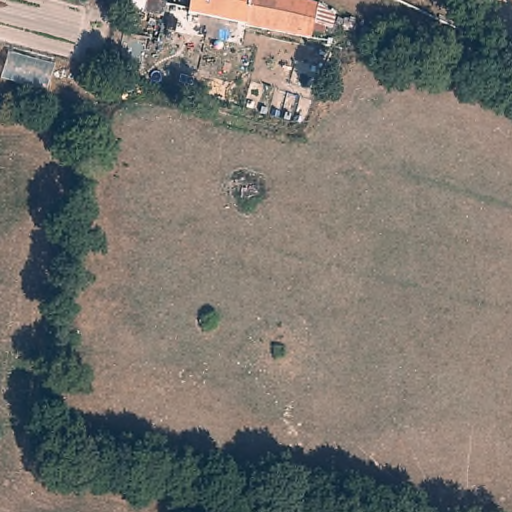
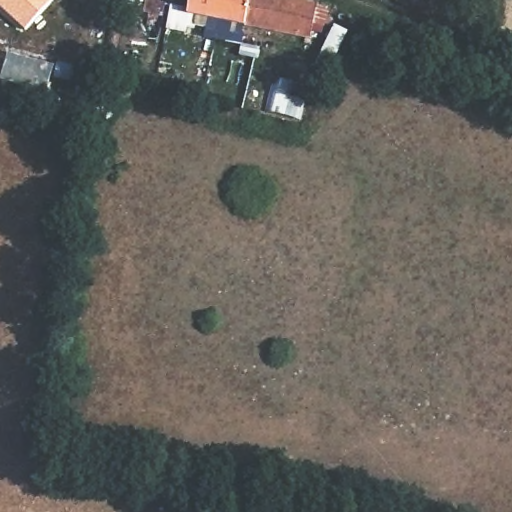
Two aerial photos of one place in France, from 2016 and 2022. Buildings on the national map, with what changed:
new [(25,29),(0,6),(0,0),(51,0),(25,29)]
unchanged [(304,8),(333,15),(325,48),(260,36),(206,25),(203,25),(205,13),(207,0),(263,0),(304,8)]
unchanged [(166,5),(163,17),(144,12),(146,1),(166,5)]

